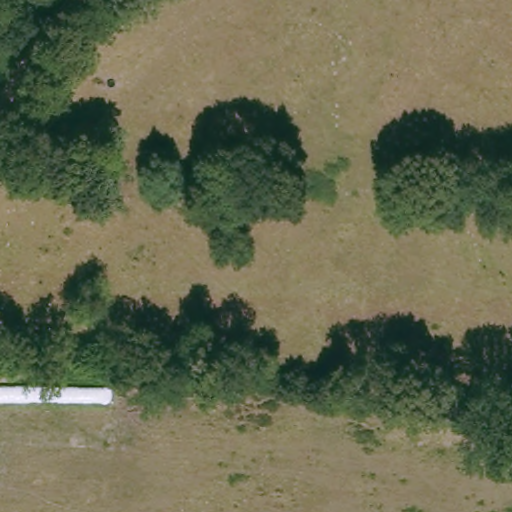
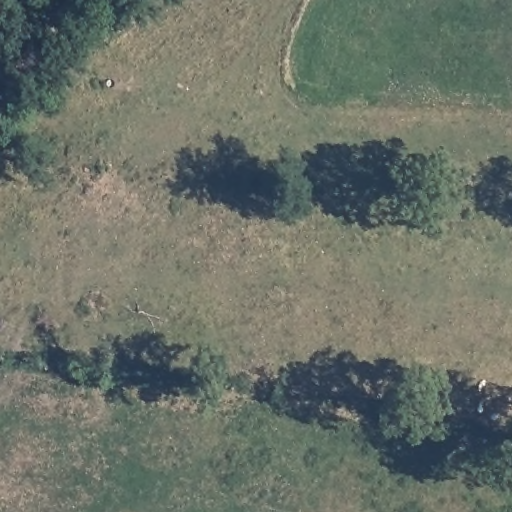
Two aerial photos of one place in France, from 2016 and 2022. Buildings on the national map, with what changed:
[]

